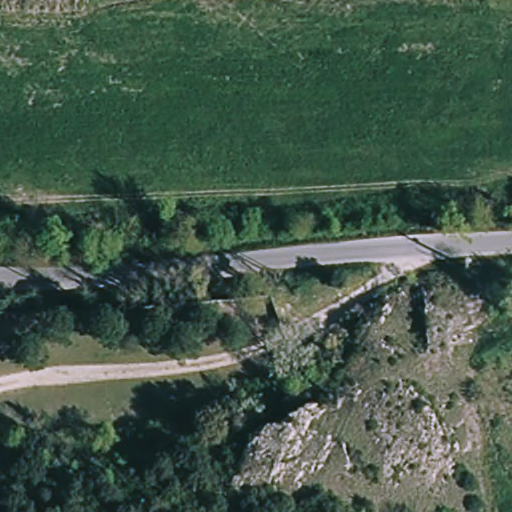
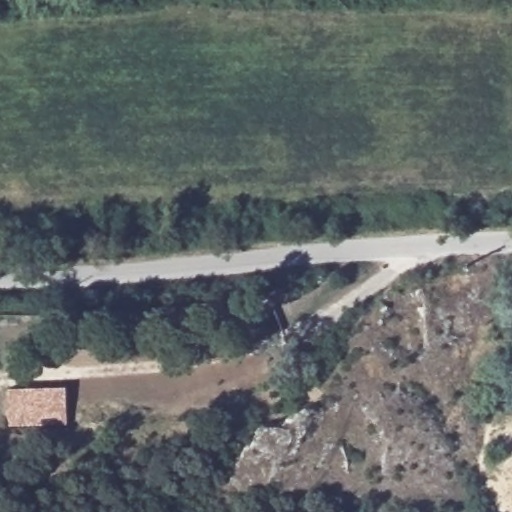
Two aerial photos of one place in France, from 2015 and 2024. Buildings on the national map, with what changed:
new [(8,390),(65,388),(66,427),(9,429),(8,390)]

